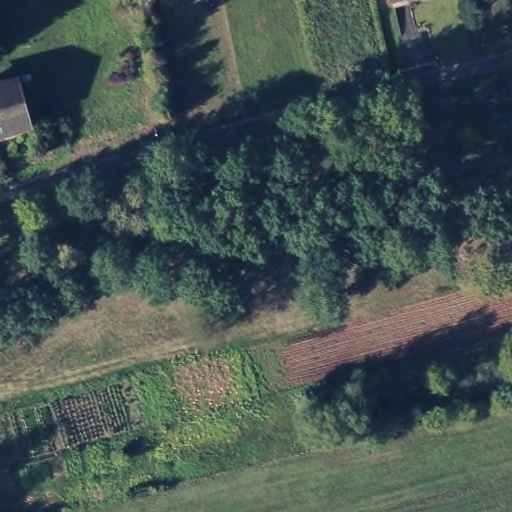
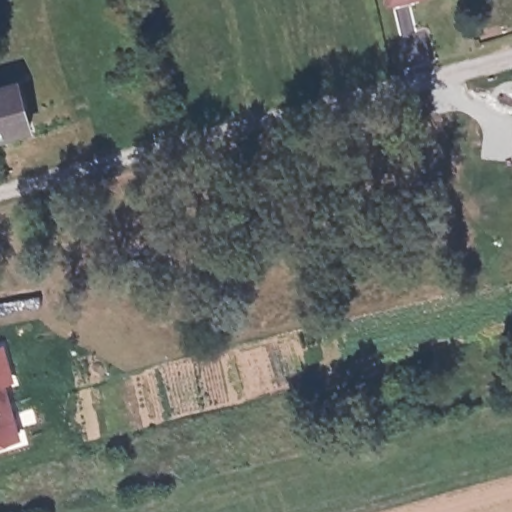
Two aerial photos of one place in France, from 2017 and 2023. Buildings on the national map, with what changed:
unchanged [(32,118),(0,133),(0,80),(10,74),(32,118)]
new [(14,382),(5,385),(22,439),(0,445),(0,344),(1,344),(14,382)]

